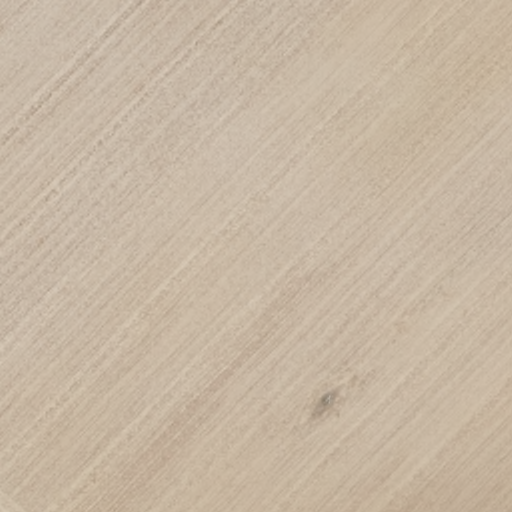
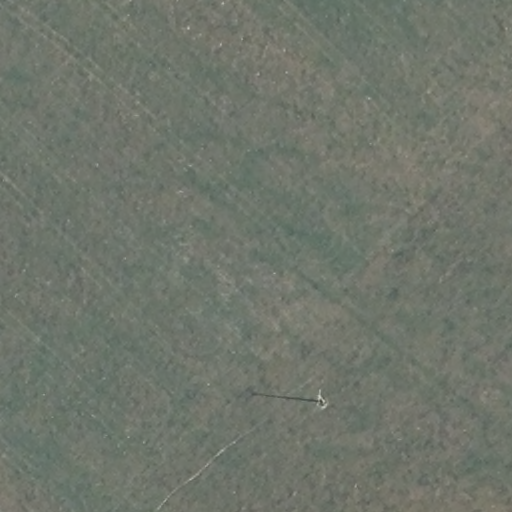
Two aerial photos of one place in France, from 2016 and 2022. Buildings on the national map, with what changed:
[]

